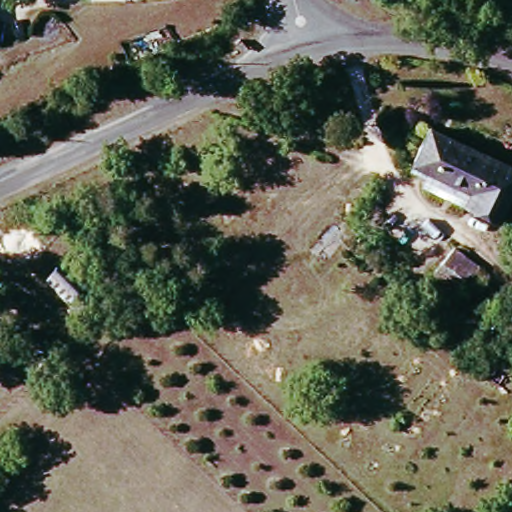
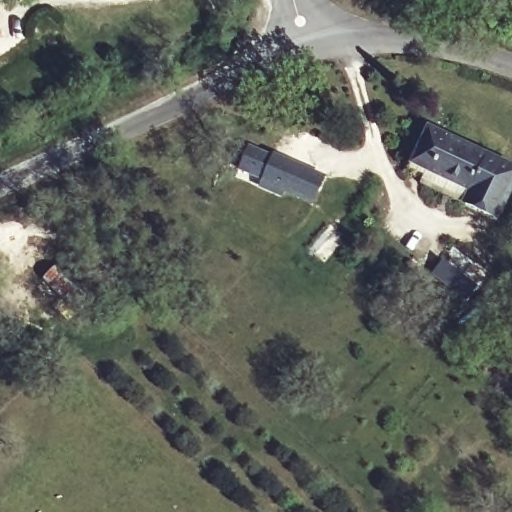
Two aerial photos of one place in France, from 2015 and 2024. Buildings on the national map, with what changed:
unchanged [(481,156),(512,171),(512,183),(490,224),(459,208),(465,194),(407,166),(425,129),(481,156)]
new [(237,175),(247,144),(271,154),(273,150),(328,175),(314,207),(257,186),(259,182),(237,175)]
unchanged [(439,271),(459,243),(489,264),(466,293),(439,271)]

